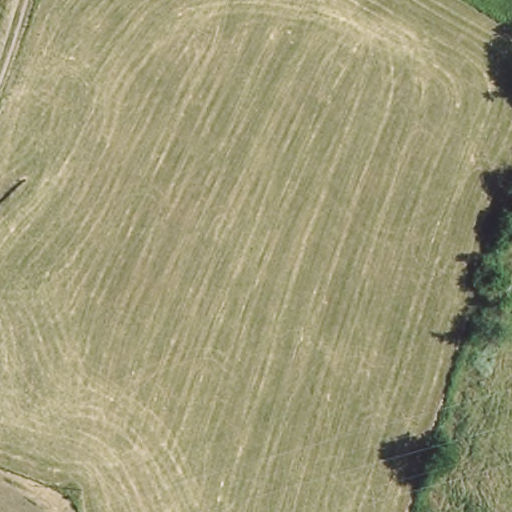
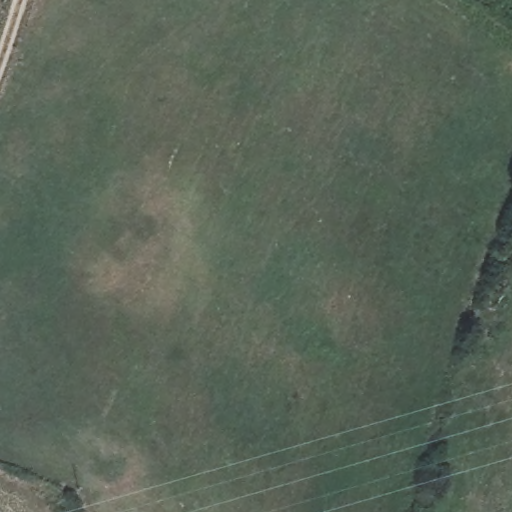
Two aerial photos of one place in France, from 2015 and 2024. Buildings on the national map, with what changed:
[]

